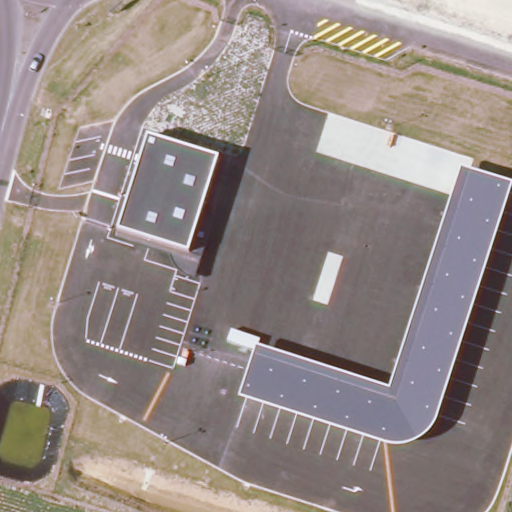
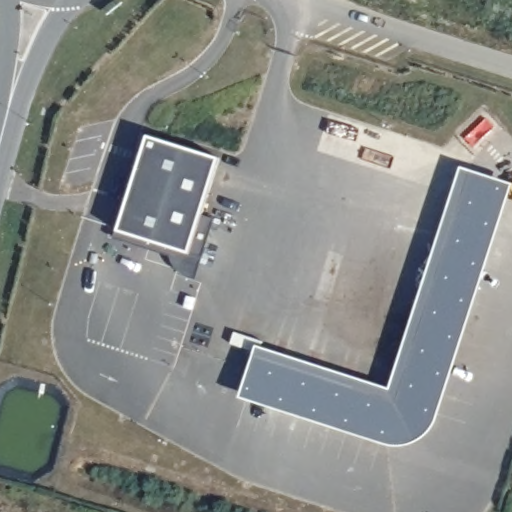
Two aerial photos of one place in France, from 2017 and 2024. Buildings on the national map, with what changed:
unchanged [(190,254),(118,232),(146,136),(220,159),(190,254)]
unchanged [(512,185),(512,190),(437,422),(434,427),(429,435),(422,440),(414,445),(407,447),(397,449),(390,448),(239,398),(256,347),(389,390),(462,169),(512,185)]

